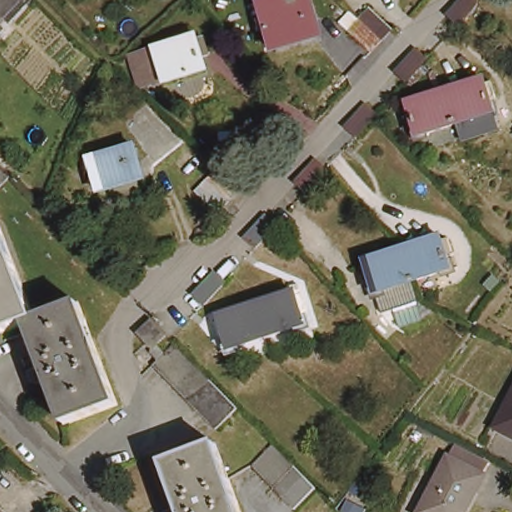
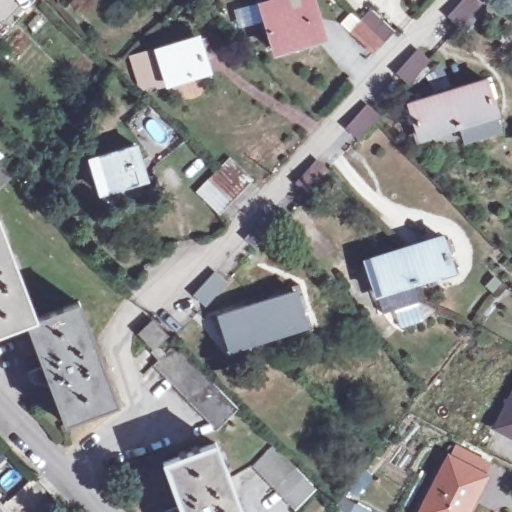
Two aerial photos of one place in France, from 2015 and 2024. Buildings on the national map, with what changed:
unchanged [(311,21),(315,38),(275,50),(261,3),(271,0),(312,0),(318,19),(311,21)]
unchanged [(452,14),(465,0),(481,0),(483,2),(462,24),(452,14)]
unchanged [(351,29),(361,19),(372,6),(393,26),(382,38),(372,49),(351,29)]
unchanged [(213,37),(221,35),(226,53),(218,55),(222,66),(173,81),(171,78),(159,82),(154,78),(146,51),(173,43),(174,44),(210,33),(213,37)]
unchanged [(420,49),(431,59),(412,81),(400,71),(420,49)]
unchanged [(480,73),(497,124),(463,135),(456,119),(416,133),(405,98),(480,73)]
unchanged [(361,136),(350,126),(371,104),(381,114),(361,136)]
unchanged [(106,194),(104,182),(101,164),(94,164),(93,150),(99,149),(98,148),(143,139),(145,154),(137,156),(140,175),(142,188),(106,194)]
unchanged [(199,193),(210,180),(221,169),(231,159),(252,178),(242,189),(232,199),(220,212),(199,193)]
unchanged [(321,159),(331,169),(311,192),(300,182),(321,159)]
unchanged [(16,178),(0,193),(0,162),(16,178)]
unchanged [(251,235),(270,215),(281,226),(259,249),(248,239),(251,235)]
unchanged [(37,319),(82,303),(119,404),(65,424),(50,381),(43,382),(42,377),(35,379),(30,369),(43,364),(28,325),(0,334),(0,218),(37,319)]
unchanged [(404,248),(441,236),(443,243),(449,240),(454,257),(448,258),(453,270),(415,282),(404,248)]
unchanged [(381,293),(377,282),(371,284),(366,269),(371,267),(369,259),(404,248),(415,282),(381,293)]
unchanged [(216,274),(227,284),(207,307),(195,297),(216,274)]
unchanged [(295,308),(303,305),(307,317),(309,317),(312,327),(303,330),(302,326),(228,351),(229,354),(221,357),(214,335),(221,332),(216,316),(290,292),(295,308)]
unchanged [(162,329),(152,339),(143,329),(153,320),(162,329)]
unchanged [(181,344),(235,399),(214,419),(151,355),(171,334),(181,344)]
unchanged [(512,386),(512,436),(493,428),(512,386)]
unchanged [(169,507),(180,503),(164,458),(217,439),(243,512),(171,512),(169,507)]
unchanged [(317,489),(296,509),(253,464),(273,443),(317,489)]
unchanged [(487,471),(466,512),(427,512),(423,509),(452,454),(487,471)]
unchanged [(3,457),(0,459),(0,455),(3,457)]
unchanged [(16,512),(0,512),(0,496),(16,512)]

